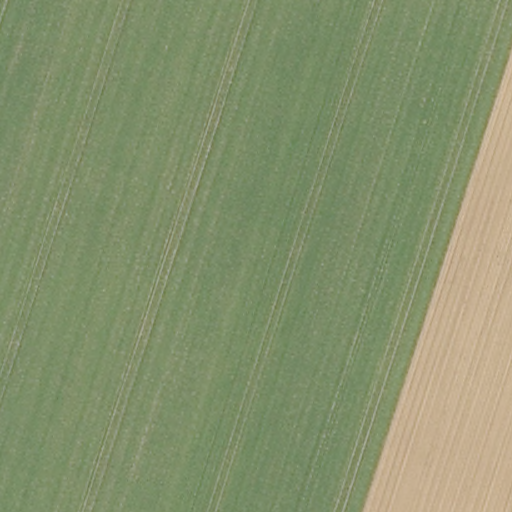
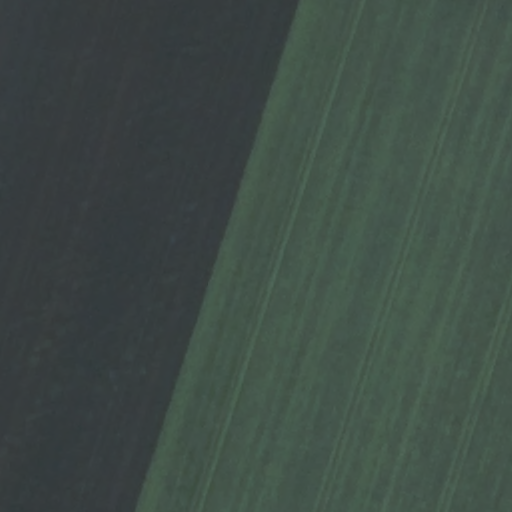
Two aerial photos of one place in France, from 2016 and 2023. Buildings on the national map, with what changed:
[]

